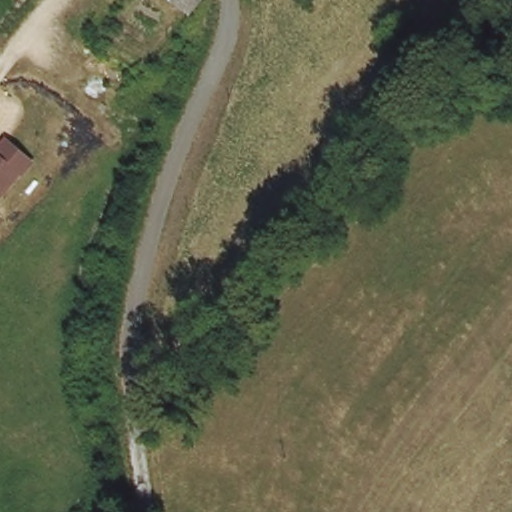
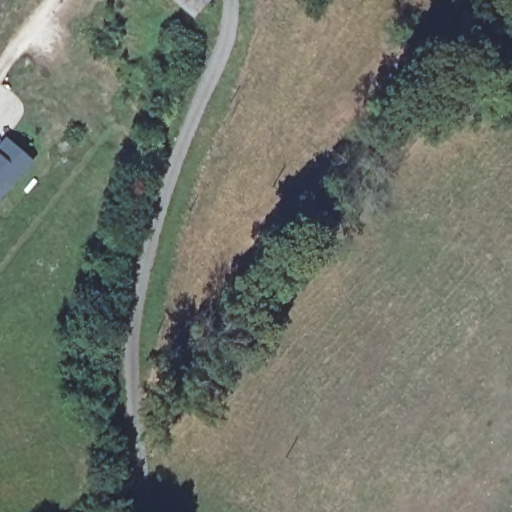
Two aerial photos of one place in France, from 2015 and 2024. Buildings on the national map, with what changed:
unchanged [(0,4),(0,0),(2,0),(0,4)]
unchanged [(194,5),(188,0),(198,0),(194,5)]
unchanged [(31,151),(18,169),(11,162),(0,174),(0,139),(7,131),(31,151)]

